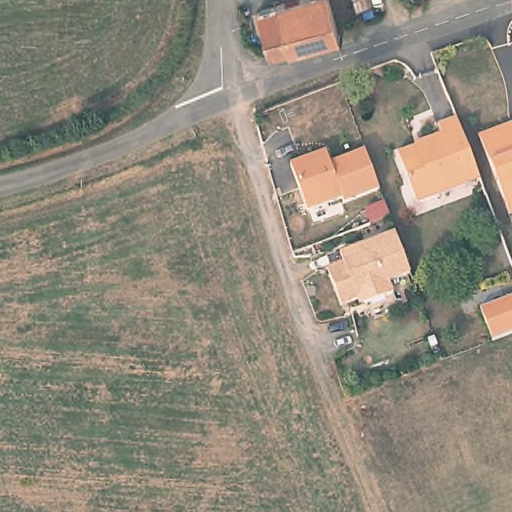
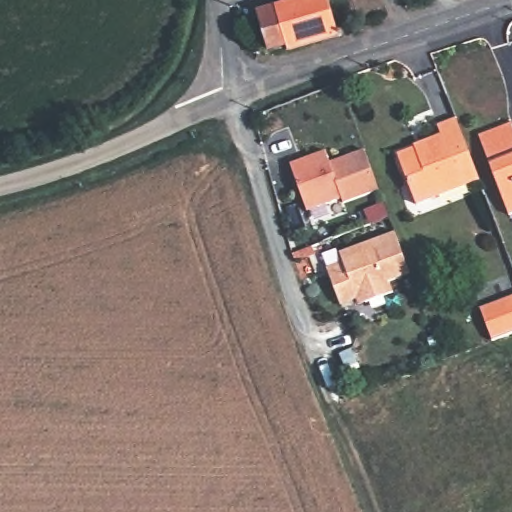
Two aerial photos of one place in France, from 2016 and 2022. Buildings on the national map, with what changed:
unchanged [(327,40),(291,51),(287,51),(286,50),(285,47),(267,51),(255,10),(290,0),(330,0),(340,36),(327,40)]
unchanged [(438,196),(416,205),(395,147),(413,140),(440,131),(435,118),(454,111),(477,173),(480,181),(438,196)]
unchanged [(482,136),(483,134),(512,123),(512,214),(482,136)]
unchanged [(292,163),(328,151),(333,163),(367,151),(376,175),(381,190),(345,202),(343,198),(309,210),(292,163)]
unchanged [(398,238),(411,274),(390,281),(395,293),(367,303),(358,299),(342,305),(328,268),(345,262),(341,252),(396,233),(398,238)]
unchanged [(479,308),(512,296),(512,333),(491,341),(479,308)]

